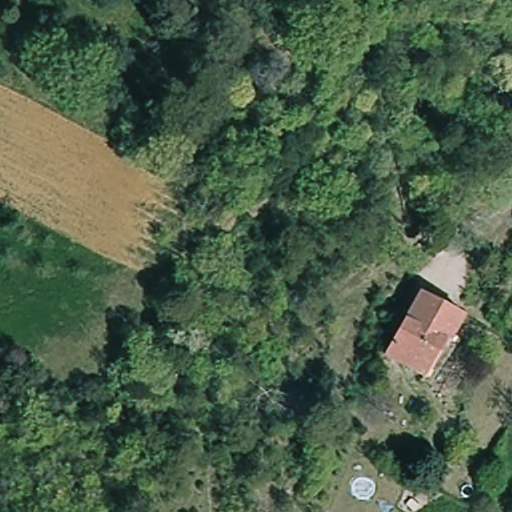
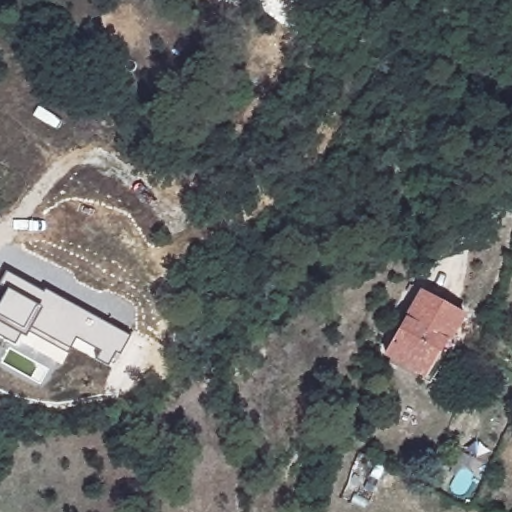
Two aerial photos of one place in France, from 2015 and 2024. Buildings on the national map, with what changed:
new [(77,337),(68,353),(30,332),(27,337),(21,335),(16,343),(0,336),(0,303),(8,289),(1,284),(7,270),(44,291),(45,288),(131,335),(120,353),(117,351),(109,365),(97,359),(102,350),(77,337)]
unchanged [(466,312),(451,340),(443,336),(422,375),(383,353),(419,286),(466,312)]

